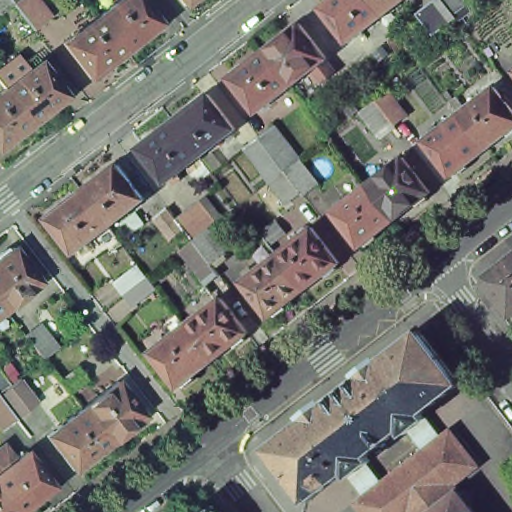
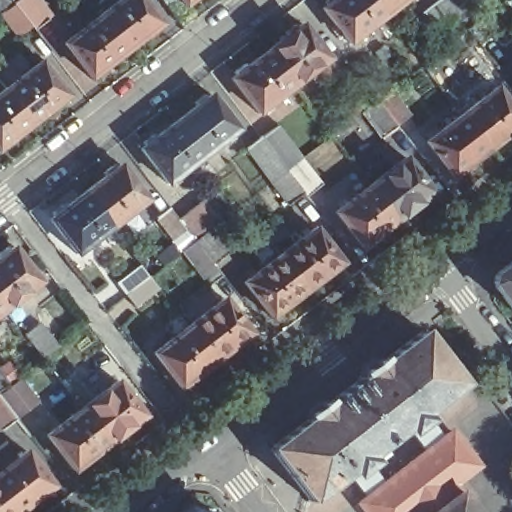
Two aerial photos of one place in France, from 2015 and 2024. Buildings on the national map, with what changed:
unchanged [(0,8),(0,0),(18,0),(16,1),(17,2),(3,12),(0,8)]
unchanged [(37,28),(17,2),(19,0),(45,0),(55,14),(51,17),(37,28)]
unchanged [(161,27),(163,30),(153,37),(150,35),(130,51),(103,16),(124,0),(148,0),(165,24),(161,27)]
unchanged [(193,2),(189,6),(185,0),(201,0),(195,5),(193,2)]
unchanged [(331,4),(329,2),(331,0),(377,0),(388,16),(353,42),(326,7),(331,4)]
unchanged [(409,0),(388,16),(377,0),(409,0)]
unchanged [(472,2),(477,9),(465,18),(460,12),(459,12),(461,16),(447,27),(431,5),(437,0),(472,0),(473,1),(472,2)]
unchanged [(130,51),(110,67),(112,69),(101,77),(100,75),(95,78),(68,43),(103,16),(130,51)]
unchanged [(322,87),(313,74),(297,86),(271,51),(291,35),(289,32),(300,25),(301,27),(306,24),(333,58),(332,59),(342,72),(322,87)]
unchanged [(235,78),(240,75),(238,72),(248,64),(250,67),(271,51),(297,86),(262,113),(235,78)]
unchanged [(366,55),(381,75),(370,85),(354,64),(366,55)]
unchanged [(70,94),(65,97),(68,100),(57,109),(55,106),(35,122),(7,87),(43,60),(70,94)]
unchanged [(473,166),(462,174),(460,171),(456,175),(429,140),(465,112),(448,92),(451,89),(457,97),(460,95),(470,108),(500,85),(512,101),(512,132),(491,147),(471,163),(473,166)]
unchanged [(14,137),(16,140),(6,148),(4,145),(0,148),(0,92),(7,87),(35,122),(14,137)]
unchanged [(385,136),(365,110),(380,99),(380,98),(392,89),(411,112),(398,122),(400,124),(385,136)]
unchanged [(178,120),(199,104),(197,101),(207,92),(210,95),(214,92),(241,127),(205,154),(178,120)]
unchanged [(143,147),(147,143),(145,140),(156,132),(158,135),(178,120),(205,154),(170,181),(143,147)]
unchanged [(250,146),(263,135),(279,124),(305,157),(325,182),(309,194),(306,191),(292,202),(275,180),(250,146)]
unchanged [(209,156),(217,150),(226,162),(218,168),(209,156)]
unchanged [(437,192),(432,196),(435,199),(425,207),(422,204),(401,220),(375,185),(410,157),(437,192)]
unchanged [(87,190),(108,174),(106,171),(116,163),(118,166),(123,162),(150,197),(115,225),(87,190)]
unchanged [(401,220),(381,235),(383,238),(373,246),(371,244),(366,247),(340,212),(375,185),(401,220)]
unchanged [(52,217),(57,214),(55,211),(65,202),(67,206),(87,190),(115,225),(79,252),(52,217)]
unchanged [(197,262),(185,249),(198,239),(189,227),(176,237),(159,216),(172,205),(181,217),(206,198),(210,195),(227,216),(224,219),(241,242),(231,250),(231,251),(216,262),(225,273),(212,283),(197,262)]
unchanged [(262,262),(254,251),(270,237),(265,231),(281,217),(291,231),(275,244),(279,249),(262,262)]
unchanged [(317,226),(345,261),(340,264),(342,267),(331,275),(330,272),(310,287),(282,253),(317,226)]
unchanged [(0,257),(1,256),(0,254),(0,253),(10,246),(12,248),(16,245),(43,280),(8,307),(0,296),(0,257)]
unchanged [(288,303),(291,307),(280,315),(278,312),(273,315),(247,280),(282,253),(310,287),(288,303)]
unchanged [(498,286),(500,271),(512,261),(512,303),(498,286)]
unchanged [(142,262),(151,275),(128,292),(119,281),(142,262)]
unchanged [(138,305),(128,293),(152,275),(161,287),(138,305)]
unchanged [(0,313),(0,296),(8,307),(0,313)]
unchanged [(253,331),(249,334),(251,337),(240,345),(238,342),(218,358),(191,323),(226,296),(253,331)]
unchanged [(198,374),(200,377),(190,385),(187,382),(183,386),(156,351),(175,336),(166,323),(182,312),(191,323),(218,358),(198,374)]
unchanged [(44,321),(62,344),(46,357),(28,332),(44,321)]
unchanged [(426,411),(430,417),(414,430),(411,432),(406,427),(372,453),(376,459),(372,462),(356,475),(352,468),(313,499),(272,447),(311,417),(310,413),(330,398),(331,401),(366,374),(364,372),(384,356),(386,358),(425,328),(465,381),(426,411)]
unchanged [(0,365),(13,382),(1,391),(0,389),(0,365)]
unchanged [(36,385),(56,370),(63,378),(80,365),(89,377),(72,390),(52,405),(36,385)]
unchanged [(0,390),(1,392),(2,393),(23,377),(41,400),(20,417),(5,427),(0,420),(0,390)]
unchanged [(120,378),(147,413),(142,417),(145,420),(135,427),(132,425),(112,441),(85,406),(120,378)]
unchanged [(91,457),(93,460),(83,467),(81,465),(76,468),(49,433),(85,406),(112,441),(91,457)]
unchanged [(445,437),(455,429),(481,463),(458,482),(464,490),(481,512),(371,512),(362,501),(372,493),(356,475),(372,462),(388,482),(430,449),(414,430),(430,417),(445,437)]
unchanged [(0,449),(6,443),(17,458),(30,449),(56,484),(52,487),(54,490),(43,498),(41,496),(21,512),(20,512),(0,512),(0,449)]
unchanged [(197,505),(212,507),(217,512),(188,512),(197,505)]

